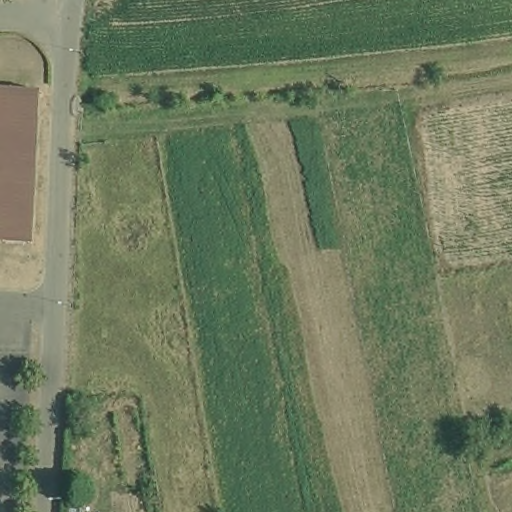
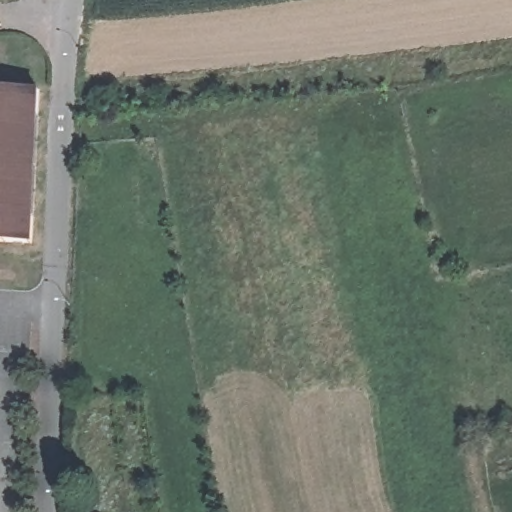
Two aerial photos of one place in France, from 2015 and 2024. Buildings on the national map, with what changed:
unchanged [(0,114),(0,90),(40,92),(38,112),(30,245),(0,243),(0,114)]

